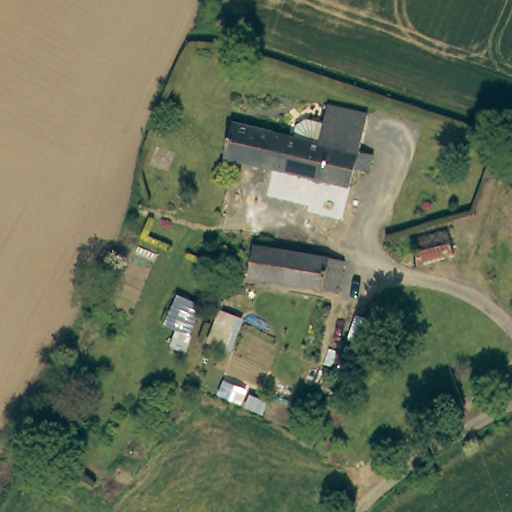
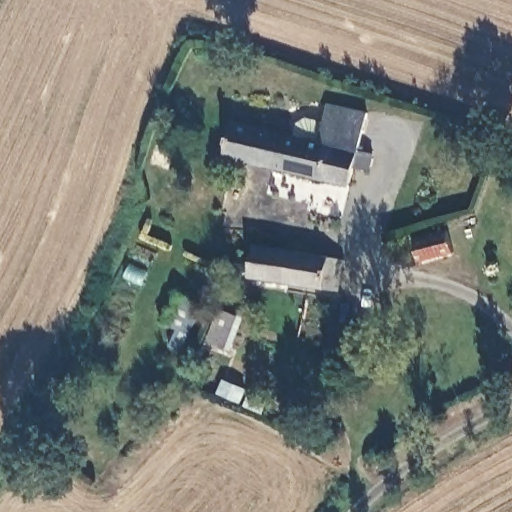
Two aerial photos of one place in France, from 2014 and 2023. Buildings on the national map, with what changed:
unchanged [(324,107),(366,116),(357,153),(317,145),(324,107)]
unchanged [(357,153),(371,156),(368,171),(356,169),(351,187),(338,185),(249,167),(225,162),(230,127),(317,145),(357,153)]
unchanged [(414,264),(409,247),(407,241),(448,229),(453,254),(414,264)]
unchanged [(337,260),(332,289),(240,277),(245,245),(337,260)]

